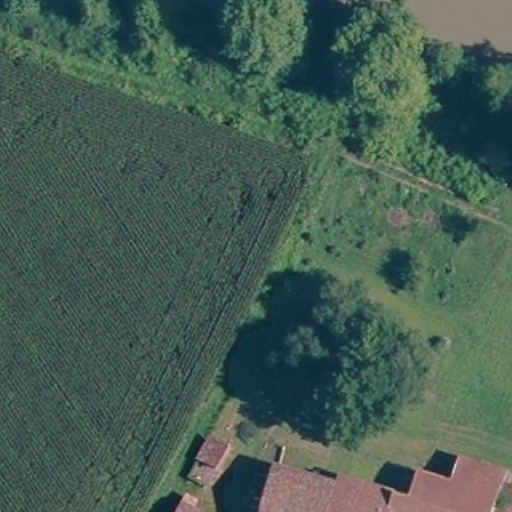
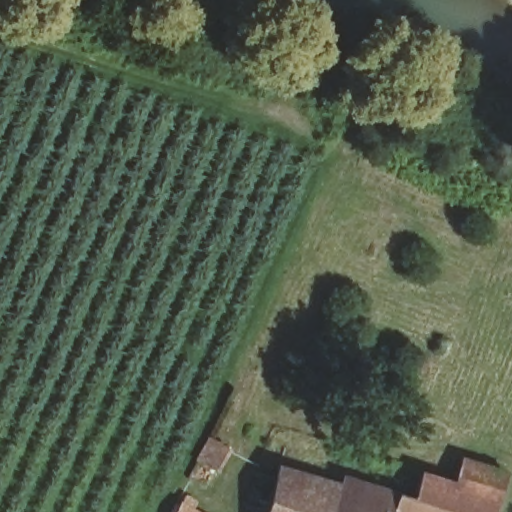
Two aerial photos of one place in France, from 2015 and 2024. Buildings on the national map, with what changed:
unchanged [(209,439),(230,452),(217,474),(196,460),(209,439)]
unchanged [(415,470),(448,481),(456,455),(505,473),(493,512),(390,512),(396,491),(407,495),(415,470)]
unchanged [(396,491),(390,512),(266,512),(269,500),(255,494),(260,480),(274,485),(280,463),(340,482),(346,473),(396,491)]
unchanged [(187,512),(191,506),(199,512),(187,512)]

